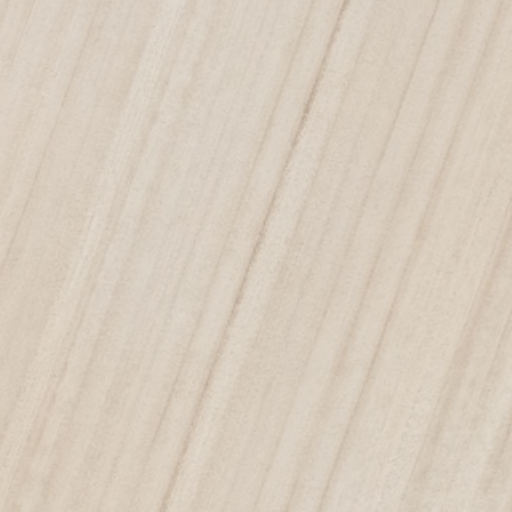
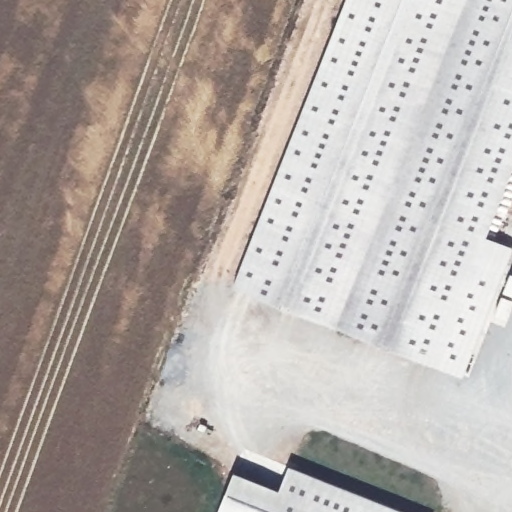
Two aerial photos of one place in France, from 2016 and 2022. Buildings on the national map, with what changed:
new [(512,246),(512,253),(463,377),(232,286),(344,0),(512,0),(512,168),(485,236),(512,246)]
new [(233,470),(279,487),(288,465),(407,512),(216,512),(233,470)]

